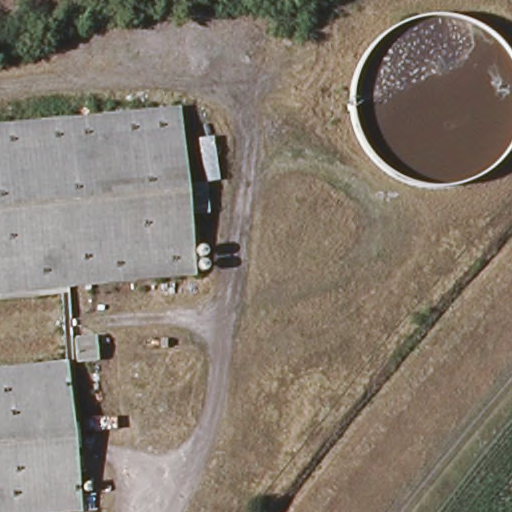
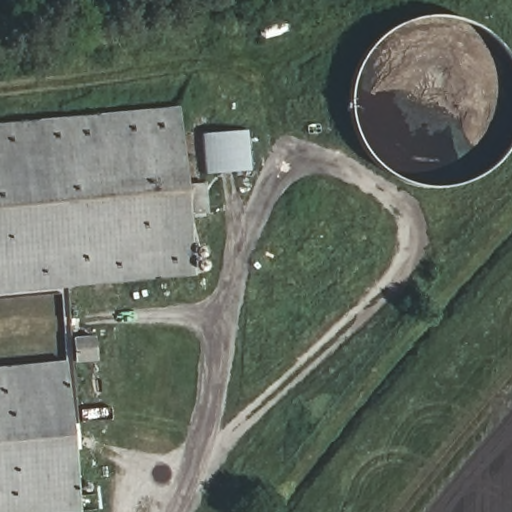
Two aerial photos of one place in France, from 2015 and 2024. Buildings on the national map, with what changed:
unchanged [(191,174),(201,283),(62,295),(52,296),(0,300),(0,130),(186,114),(191,174)]
new [(202,133),(247,130),(251,170),(206,173),(202,133)]
unchanged [(0,512),(0,373),(59,368),(69,367),(82,512),(0,512)]

